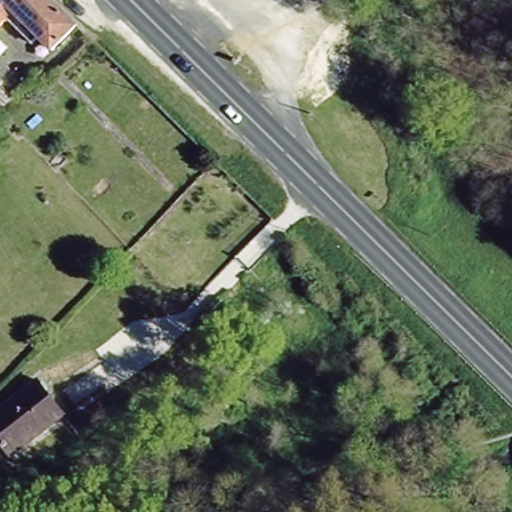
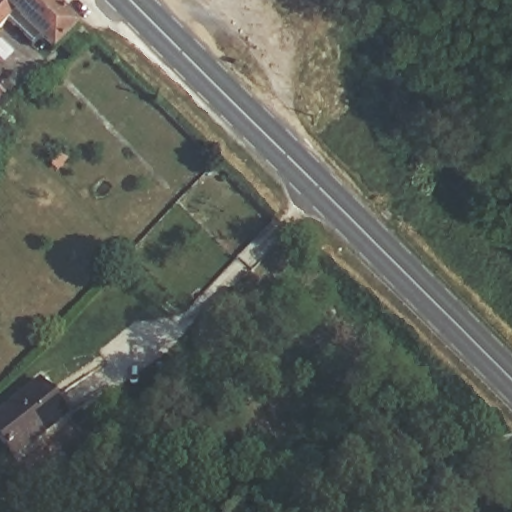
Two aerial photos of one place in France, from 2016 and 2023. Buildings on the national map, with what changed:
unchanged [(55,51),(43,39),(38,45),(10,19),(0,30),(0,0),(54,0),(79,25),(55,51)]
unchanged [(5,80),(1,85),(13,96),(0,108),(0,75),(5,80)]
unchanged [(0,446),(0,415),(35,385),(63,418),(13,462),(0,446)]

